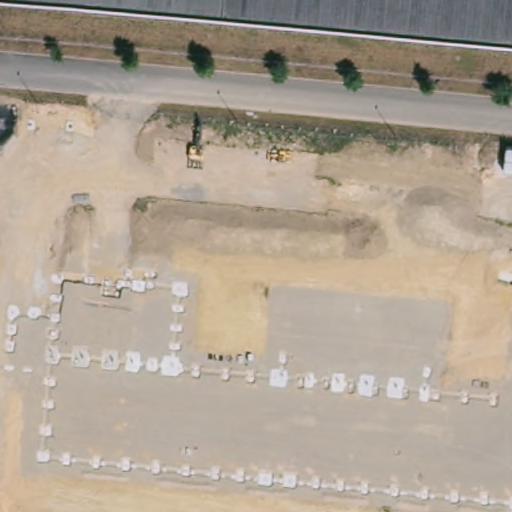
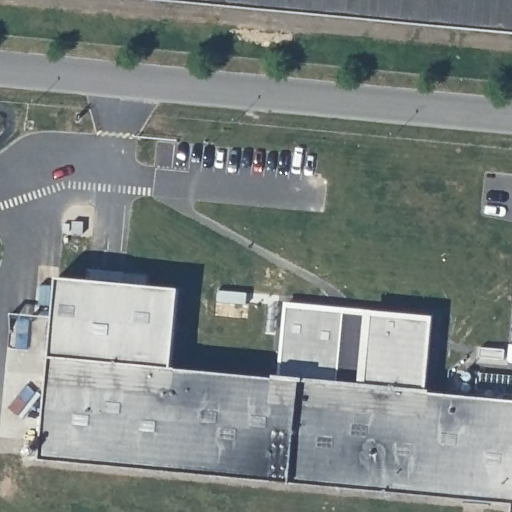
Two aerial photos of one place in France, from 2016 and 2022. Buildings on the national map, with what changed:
unchanged [(512,0),(512,34),(157,0),(512,0)]
new [(180,288),(172,366),(280,377),(286,301),(368,308),(432,315),(425,390),(512,399),(512,500),(291,481),(42,457),(59,276),(180,288)]

